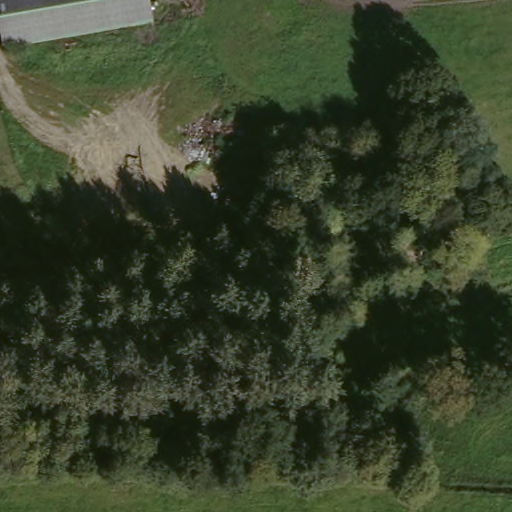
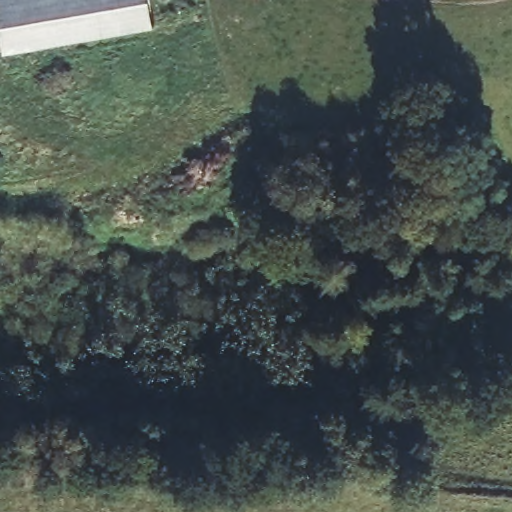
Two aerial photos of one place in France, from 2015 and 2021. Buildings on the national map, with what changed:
unchanged [(3,52),(0,36),(0,0),(149,0),(153,26),(3,52)]

